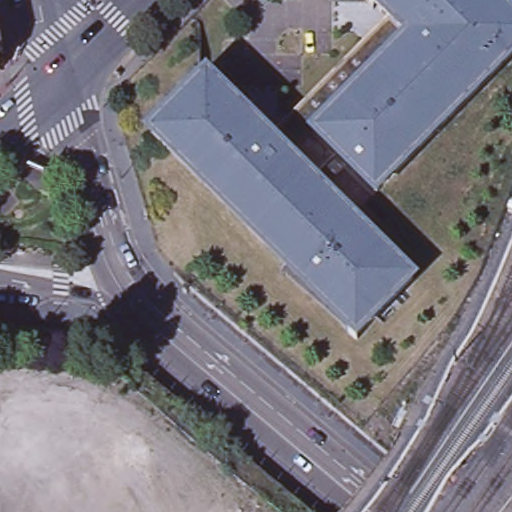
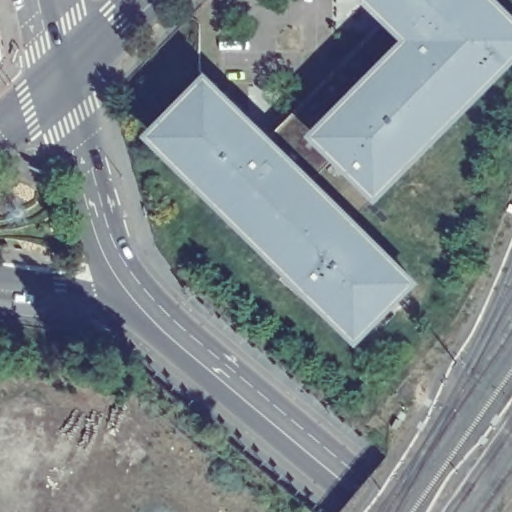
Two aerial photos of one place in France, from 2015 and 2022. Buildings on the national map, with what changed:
unchanged [(213,79),(273,140),(305,108),(395,19),(377,0),(497,0),(503,7),(507,11),(512,16),(512,67),(356,222),(417,284),(363,341),(272,249),(165,142),(158,135),(181,112),(213,79)]
unchanged [(511,0),(503,7),(497,0),(511,0)]
unchanged [(0,69),(0,28),(7,62),(0,69)]
unchanged [(417,284),(457,323),(401,378),(363,341),(417,284)]

